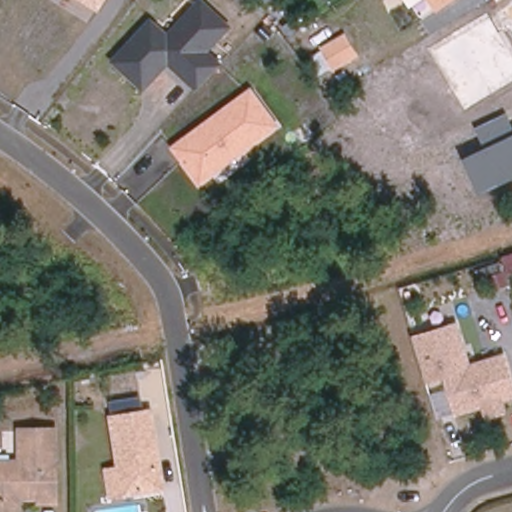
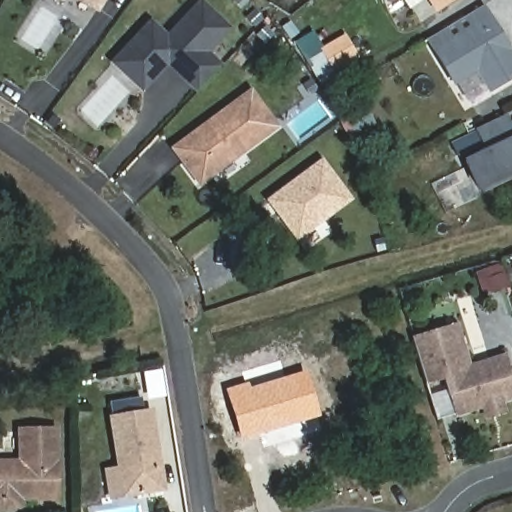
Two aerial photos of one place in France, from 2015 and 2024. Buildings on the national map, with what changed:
unchanged [(97,11),(80,0),(104,0),(97,11)]
unchanged [(221,62),(195,91),(166,66),(143,92),(109,62),(149,19),(166,33),(196,0),(201,0),(231,27),(208,52),(221,62)]
unchanged [(425,0),(453,0),(435,12),(425,0)]
new [(454,87),(426,40),(485,5),(512,50),(512,80),(489,94),(478,72),(454,87)]
unchanged [(333,71),(318,49),(344,34),(358,56),(333,71)]
unchanged [(198,186),(170,147),(250,87),(279,126),(198,186)]
new [(358,107),(368,129),(350,137),(339,115),(358,107)]
unchanged [(512,123),(512,177),(480,193),(462,158),(485,147),(475,128),(506,113),(512,123)]
new [(265,201),(323,157),(354,200),(296,242),(265,201)]
unchanged [(506,352),(512,375),(512,399),(505,401),(508,415),(486,421),(482,409),(453,417),(444,379),(425,385),(412,333),(459,321),(471,362),(506,352)]
new [(225,390),(248,382),(250,387),(307,371),(321,416),(264,433),(264,431),(240,439),(225,390)]
unchanged [(106,468),(119,466),(111,417),(149,410),(156,452),(153,452),(155,462),(159,461),(163,485),(132,491),(110,495),(106,468)]
unchanged [(0,460),(21,459),(21,427),(55,427),(57,497),(39,498),(39,486),(28,486),(21,493),(21,506),(0,507),(0,460)]

